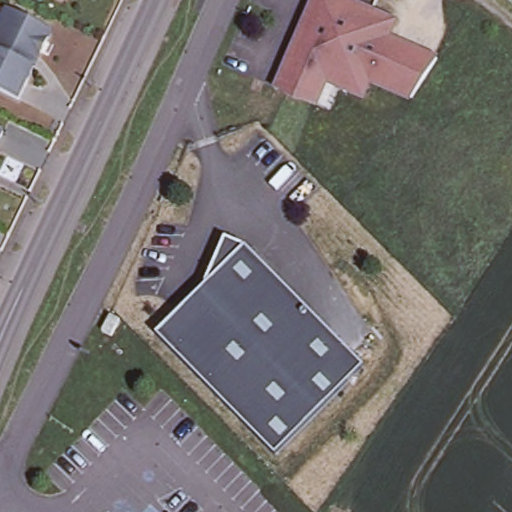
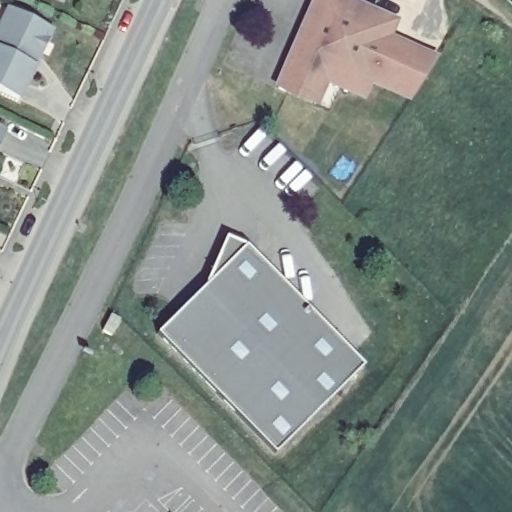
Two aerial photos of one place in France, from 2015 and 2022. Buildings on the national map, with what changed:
unchanged [(393,84),(379,78),(371,75),(360,97),(326,81),(314,105),(276,88),(316,0),(338,0),(393,25),(383,47),(405,57),(429,68),(414,93),(393,84)]
unchanged [(35,59),(31,69),(33,70),(18,101),(0,93),(0,29),(8,12),(46,31),(48,40),(38,60),(35,59)]
unchanged [(0,136),(0,132),(1,132),(0,136)]
unchanged [(274,456),(154,336),(218,271),(212,265),(223,239),(242,247),(363,367),(274,456)]
unchanged [(110,306),(119,315),(109,331),(100,327),(110,306)]

